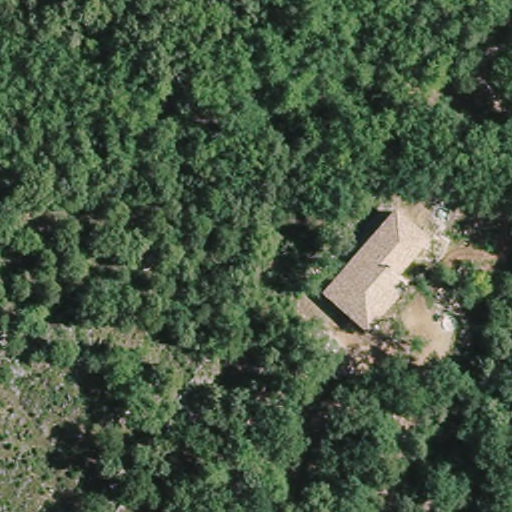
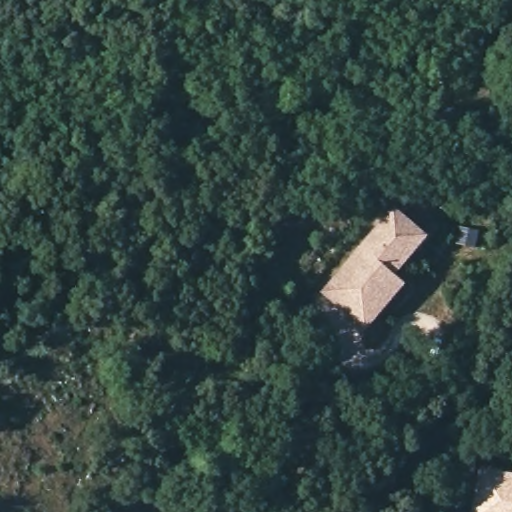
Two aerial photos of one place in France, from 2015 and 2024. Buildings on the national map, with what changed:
unchanged [(323,292),(395,207),(430,236),(398,273),(409,282),(367,330),(323,292)]
new [(512,472),(512,512),(469,512),(479,466),(512,472)]

